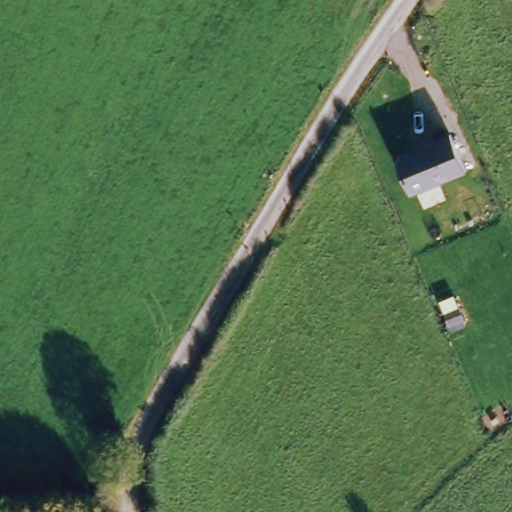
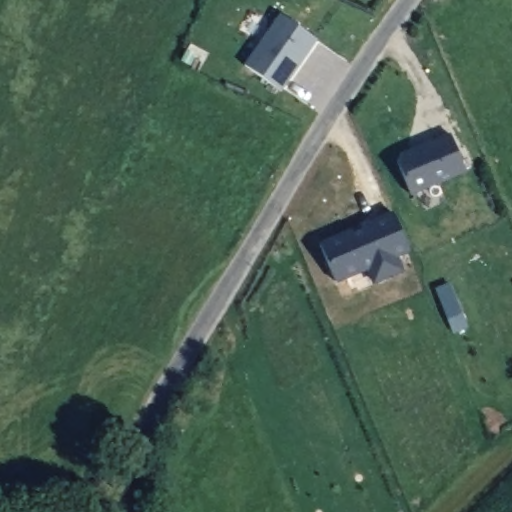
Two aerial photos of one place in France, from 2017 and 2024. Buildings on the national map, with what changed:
new [(283,91),(244,65),(250,56),(253,59),(256,54),(253,52),(279,15),(318,41),(283,91)]
unchanged [(411,197),(397,164),(401,154),(449,133),(467,174),(411,197)]
new [(373,286),(365,274),(337,285),(319,243),(352,230),(354,232),(361,229),(359,225),(394,212),(411,253),(399,258),(404,271),(373,286)]
new [(453,334),(437,289),(452,284),(468,329),(453,334)]

